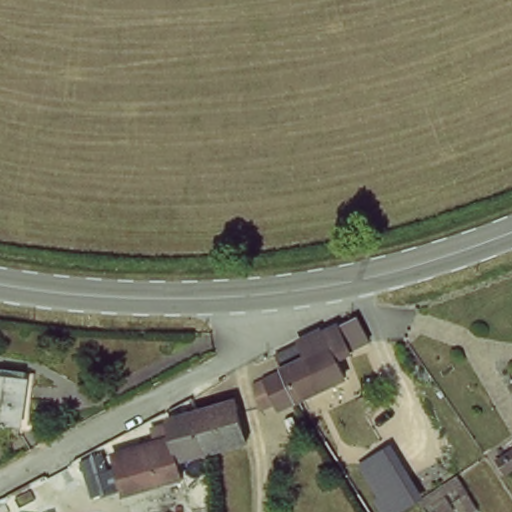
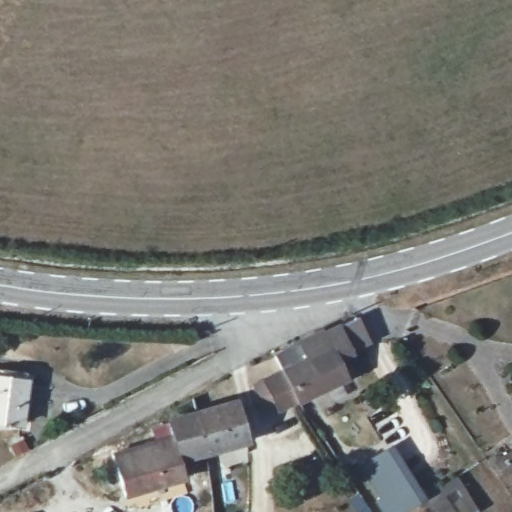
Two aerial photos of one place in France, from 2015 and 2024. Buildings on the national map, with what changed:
unchanged [(302,341),(356,315),(369,338),(338,352),(349,374),(326,385),(302,341)]
unchanged [(274,388),(258,396),(253,383),(283,369),(286,368),(276,354),(302,341),(326,385),(301,397),(284,406),(274,388)]
unchanged [(14,423),(0,421),(0,376),(21,379),(14,423)]
unchanged [(183,464),(188,479),(124,498),(110,455),(156,440),(153,430),(168,425),(166,421),(236,400),(251,445),(183,464)]
unchanged [(418,502),(402,512),(382,512),(374,503),(381,497),(359,465),(384,449),(418,502)]
unchanged [(435,512),(426,500),(457,478),(479,511),(478,512),(435,512)]

